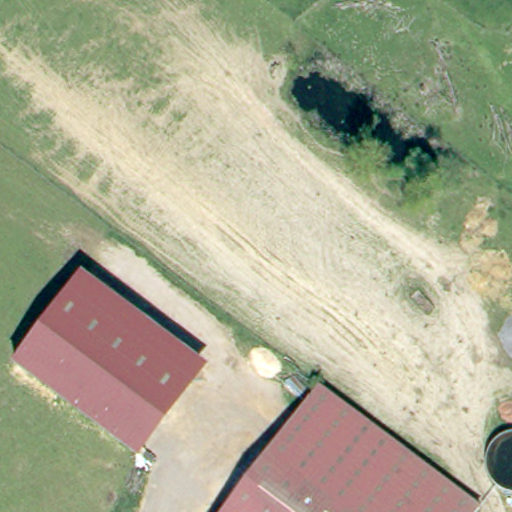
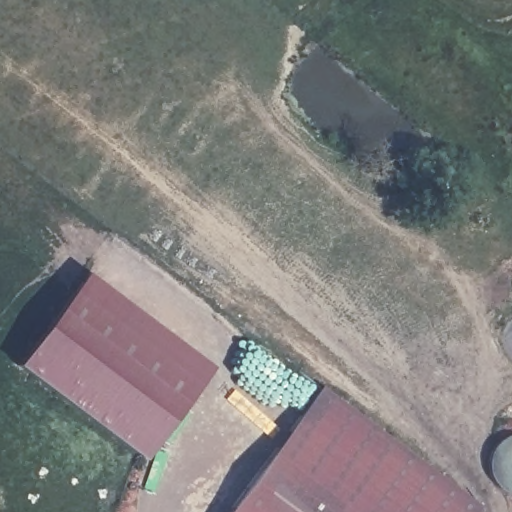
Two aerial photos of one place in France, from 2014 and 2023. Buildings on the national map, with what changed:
unchanged [(215,368),(203,385),(83,295),(95,278),(215,368)]
unchanged [(149,457),(29,367),(83,295),(203,385),(149,457)]
unchanged [(485,504),(479,512),(227,512),(323,383),(485,504)]

